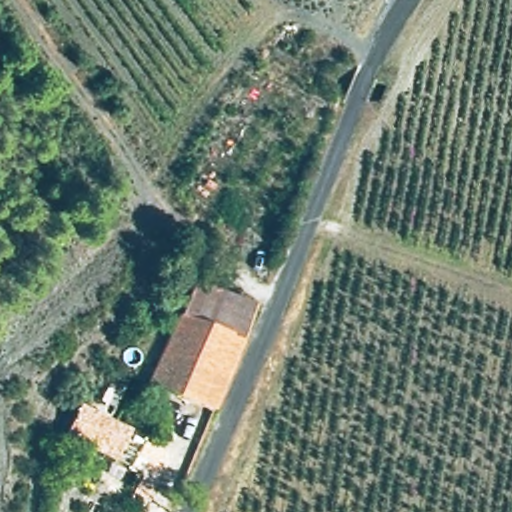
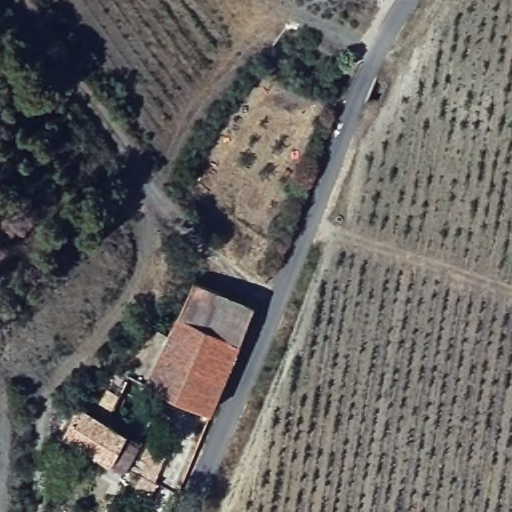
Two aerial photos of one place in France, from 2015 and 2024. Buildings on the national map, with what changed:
unchanged [(212,404),(152,386),(192,273),(252,289),(212,404)]
unchanged [(132,421),(115,459),(58,434),(81,397),(132,421)]

